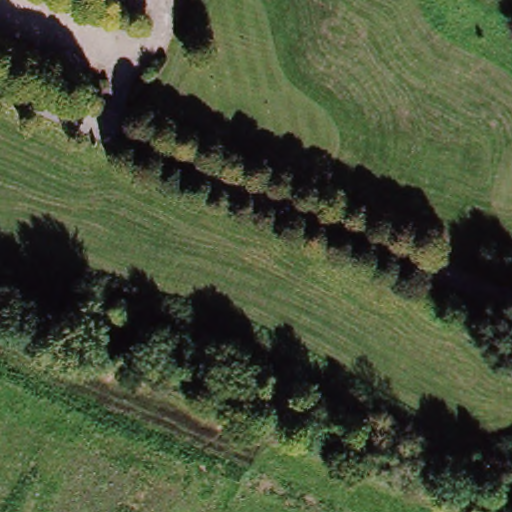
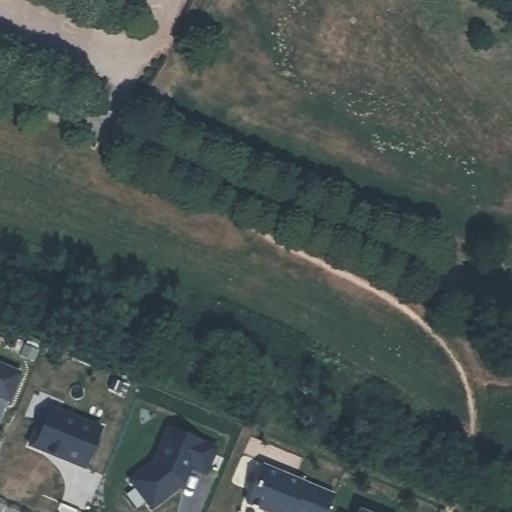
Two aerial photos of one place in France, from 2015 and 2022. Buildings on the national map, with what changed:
new [(9,403),(0,400),(0,367),(20,375),(9,403)]
new [(38,426),(42,428),(50,409),(101,431),(85,471),(29,447),(38,426)]
new [(154,465),(168,432),(215,452),(204,478),(190,471),(182,488),(150,512),(130,484),(154,465)]
new [(333,495),(326,512),(266,512),(246,503),(262,465),(333,495)]
new [(360,512),(358,512),(359,511),(360,512)]

